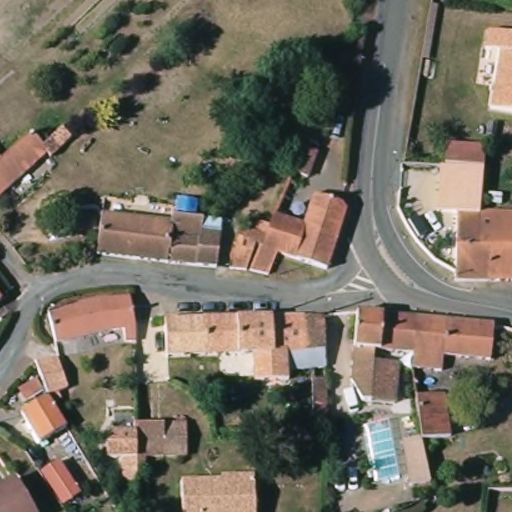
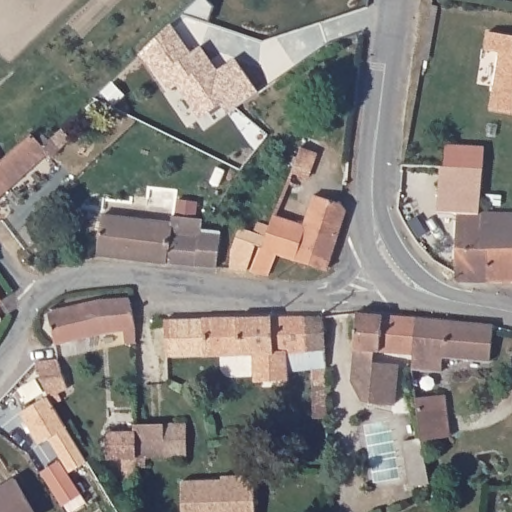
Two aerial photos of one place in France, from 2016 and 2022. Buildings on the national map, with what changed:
new [(171,24),(190,52),(202,45),(218,70),(237,58),(260,91),(229,114),(222,105),(199,119),(178,87),(170,91),(137,56),(171,24)]
unchanged [(492,111),(501,55),(486,53),(489,34),(512,37),(512,115),(492,111)]
unchanged [(30,136),(43,149),(49,143),(60,133),(72,145),(51,164),(46,160),(0,200),(0,165),(7,158),(30,136)]
unchanged [(452,216),(436,214),(437,196),(438,171),(444,172),(445,151),(483,154),(482,174),(480,219),(478,256),(486,257),(486,289),(451,288),(455,216),(452,216)]
unchanged [(319,160),(310,185),(297,180),(299,174),(291,171),(295,160),(303,163),(306,155),(319,160)]
unchanged [(276,218),(305,229),(316,198),(339,205),(348,213),(324,272),(278,257),(269,281),(252,278),(261,251),(262,251),(271,228),(276,218)]
unchanged [(99,218),(136,222),(134,234),(131,261),(96,257),(98,226),(99,218)]
unchanged [(214,260),(212,271),(193,268),(164,265),(169,226),(170,218),(177,219),(197,221),(196,238),(216,240),(214,260)]
unchanged [(512,219),(512,290),(486,289),(486,257),(478,256),(480,219),(512,219)]
unchanged [(169,226),(164,265),(131,261),(134,234),(136,222),(169,226)]
unchanged [(238,230),(244,231),(255,233),(260,225),(271,228),(262,251),(261,251),(254,249),(247,278),(229,275),(238,230)]
unchanged [(99,298),(132,298),(136,321),(137,340),(110,346),(107,332),(58,343),(51,309),(99,298)]
unchanged [(0,310),(0,302),(4,307),(0,310)]
unchanged [(400,315),(415,316),(414,344),(414,354),(376,351),(375,367),(397,369),(399,392),(395,392),(391,403),(390,403),(373,401),(375,381),(372,381),(368,381),(361,380),(361,367),(353,367),(352,366),(357,318),(358,311),(400,315)]
unchanged [(168,318),(305,315),(306,351),(287,351),(288,371),(288,374),(262,375),(261,356),(169,357),(169,344),(168,320),(168,318)]
unchanged [(313,419),(311,371),(303,371),(288,371),(287,351),(306,351),(305,315),(324,316),(325,371),(326,420),(313,419)]
unchanged [(495,323),(492,361),(445,356),(443,371),(415,369),(413,368),(414,354),(414,344),(415,316),(495,323)]
unchanged [(14,416),(42,402),(34,374),(32,367),(55,364),(61,396),(51,398),(53,404),(46,409),(61,435),(32,450),(14,416)]
unchanged [(418,400),(447,396),(452,438),(422,442),(427,483),(408,485),(403,441),(422,439),(418,400)]
unchanged [(132,429),(186,429),(185,462),(142,461),(141,472),(132,471),(132,435),(132,429)]
unchanged [(117,486),(117,463),(105,464),(105,437),(132,435),(132,471),(130,486),(117,486)]
unchanged [(71,468),(94,495),(76,508),(52,480),(71,468)]
unchanged [(250,478),(251,512),(187,512),(187,481),(210,481),(222,481),(222,479),(250,478)]
unchanged [(26,512),(0,512),(0,487),(7,482),(26,512)]

